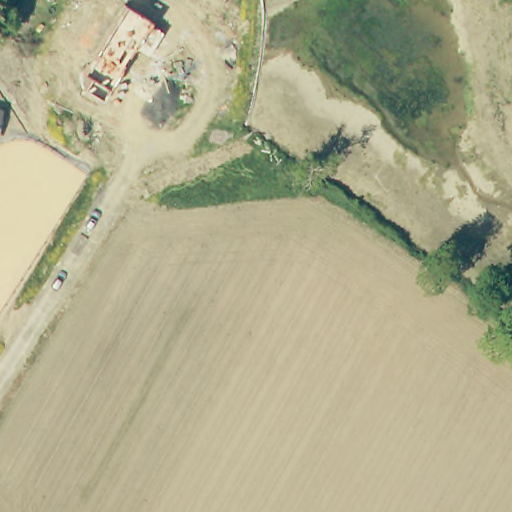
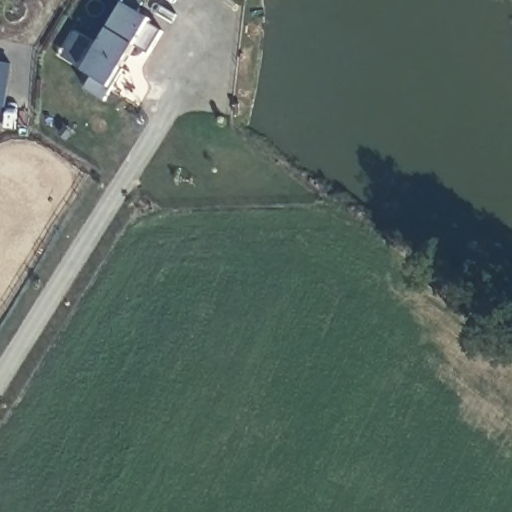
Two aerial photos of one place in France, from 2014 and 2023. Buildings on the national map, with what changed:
demolished [(50,3),(41,0),(51,0),(50,3)]
new [(85,89),(93,76),(81,69),(124,4),(118,0),(145,0),(138,11),(151,20),(149,24),(161,31),(148,53),(135,46),(121,69),(110,88),(104,101),(85,89)]
demolished [(115,13),(119,5),(148,22),(106,93),(78,76),(115,13)]
new [(1,109),(0,109),(0,63),(9,65),(1,109)]
unchanged [(0,119),(0,109),(1,109),(0,119)]

